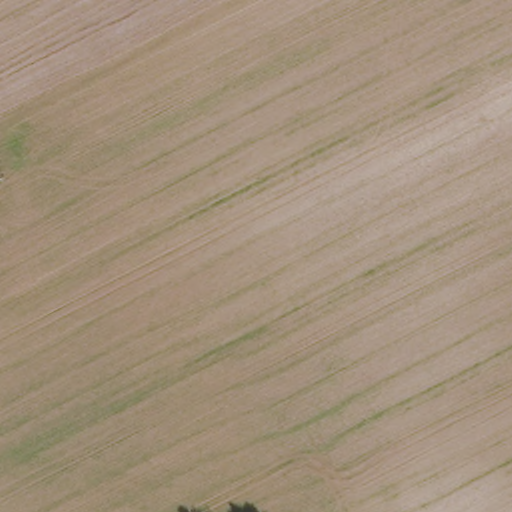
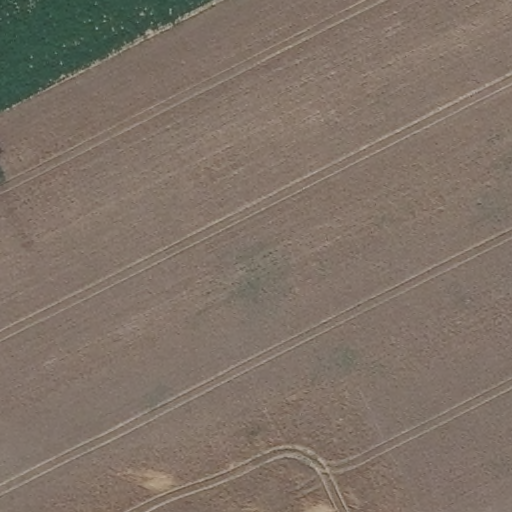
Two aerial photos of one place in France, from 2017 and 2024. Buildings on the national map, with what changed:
[]

